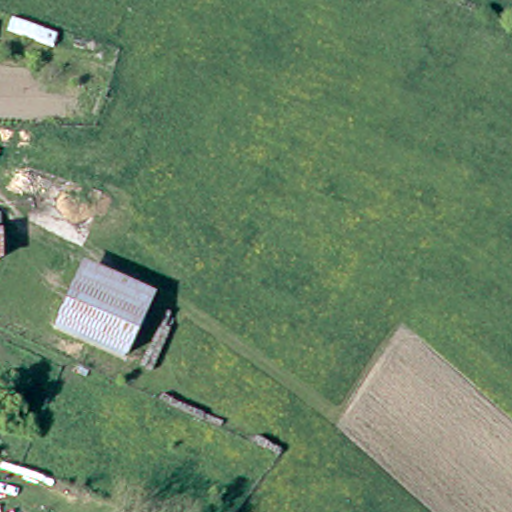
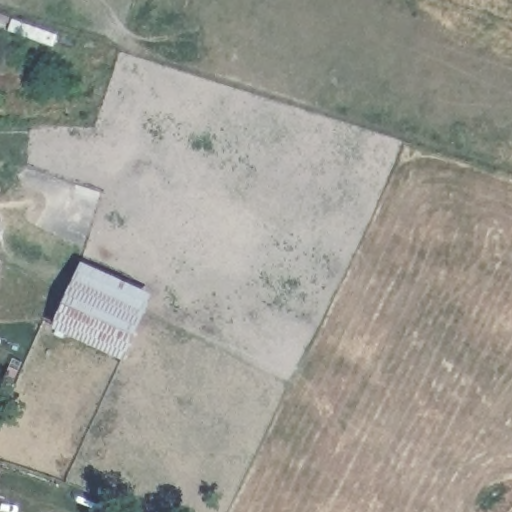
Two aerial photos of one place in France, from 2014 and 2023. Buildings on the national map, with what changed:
unchanged [(6,216),(7,263),(0,263),(0,216),(6,216)]
unchanged [(151,299),(125,361),(53,329),(80,266),(151,299)]

